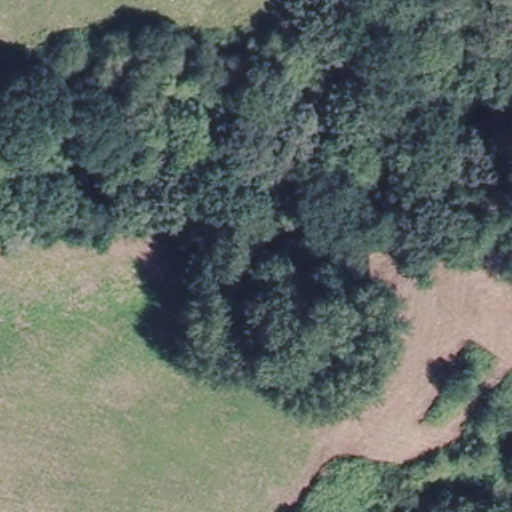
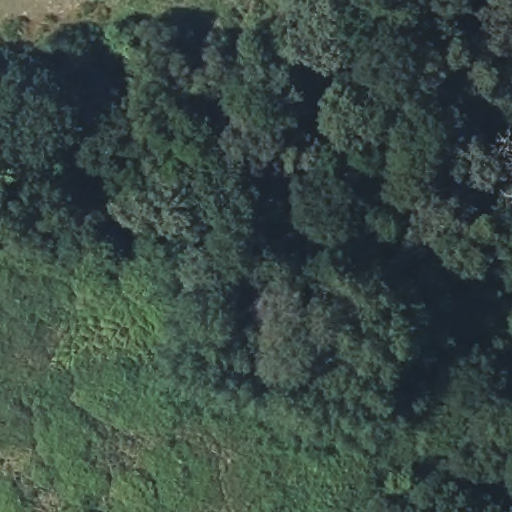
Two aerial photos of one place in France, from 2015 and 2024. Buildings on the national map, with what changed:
[]

